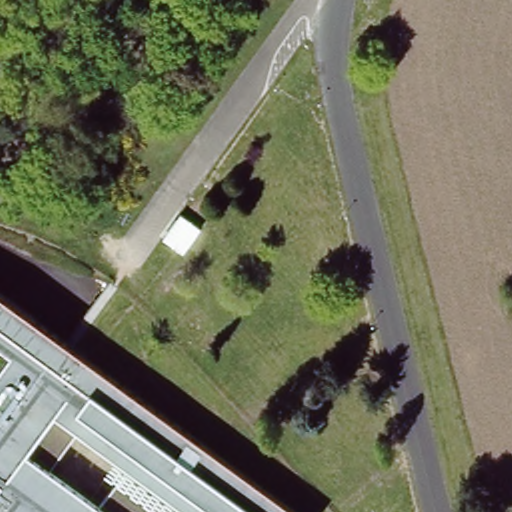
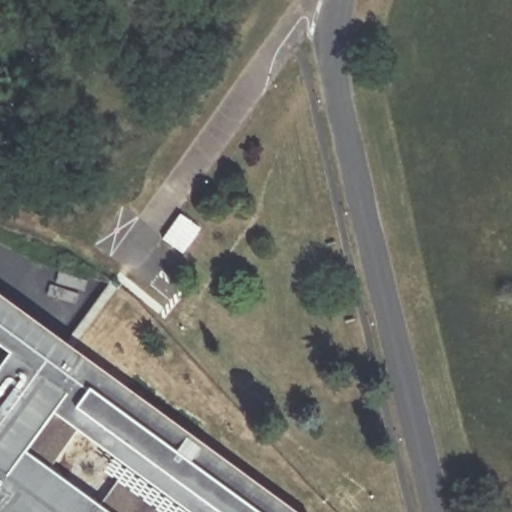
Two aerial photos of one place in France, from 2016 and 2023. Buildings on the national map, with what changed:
unchanged [(300,512),(194,512),(185,506),(180,512),(0,512),(0,361),(8,350),(0,344),(0,293),(300,512)]

